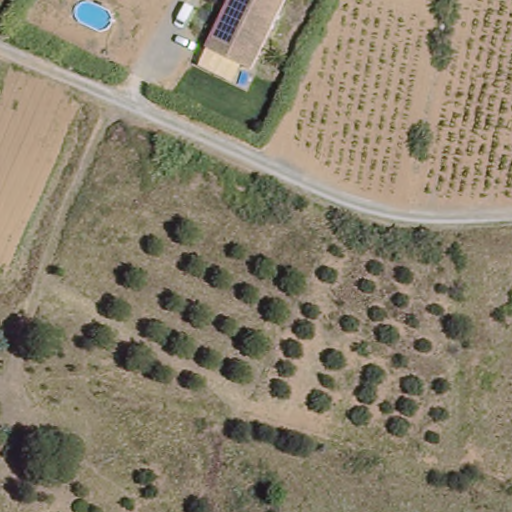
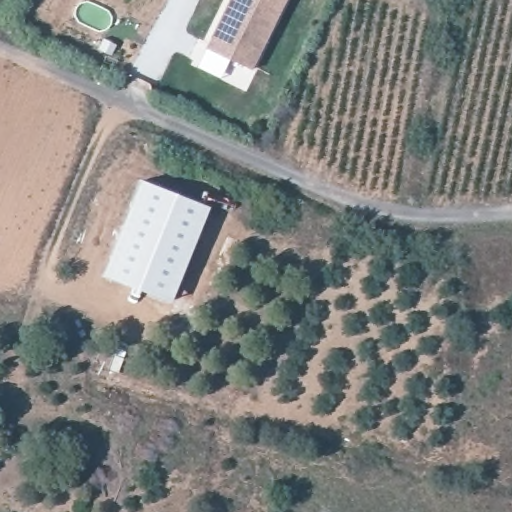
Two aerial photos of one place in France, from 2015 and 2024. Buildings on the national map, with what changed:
unchanged [(225,0),(280,0),(251,64),(205,43),(225,0)]
new [(140,178),(209,205),(170,303),(102,276),(140,178)]

